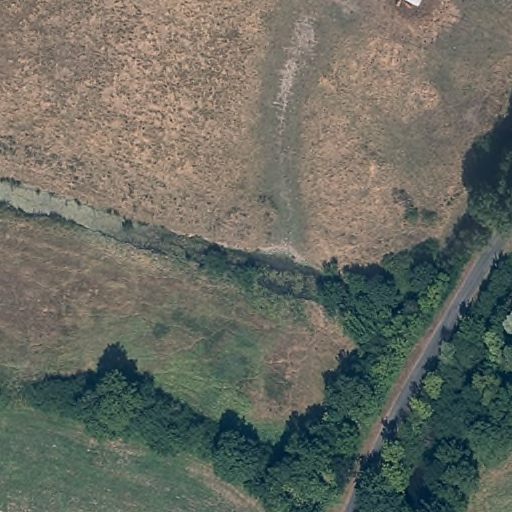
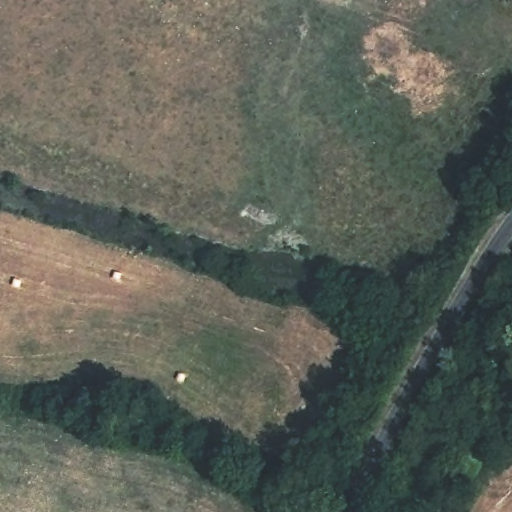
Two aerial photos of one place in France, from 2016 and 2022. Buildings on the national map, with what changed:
[]

